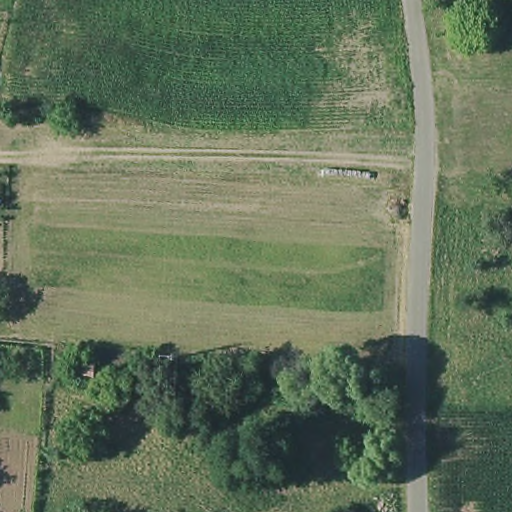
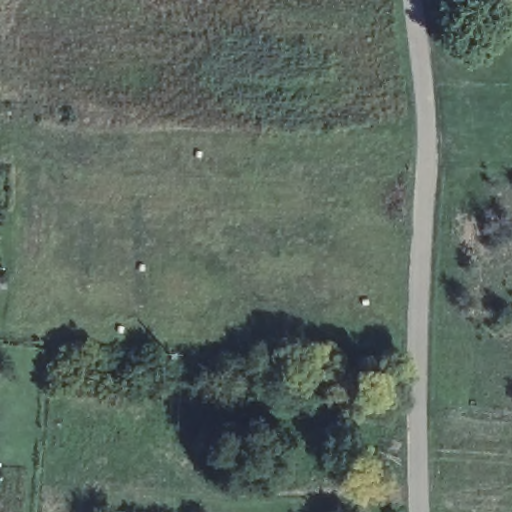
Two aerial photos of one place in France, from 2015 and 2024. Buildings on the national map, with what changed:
unchanged [(94,380),(79,379),(80,362),(96,363),(94,380)]

